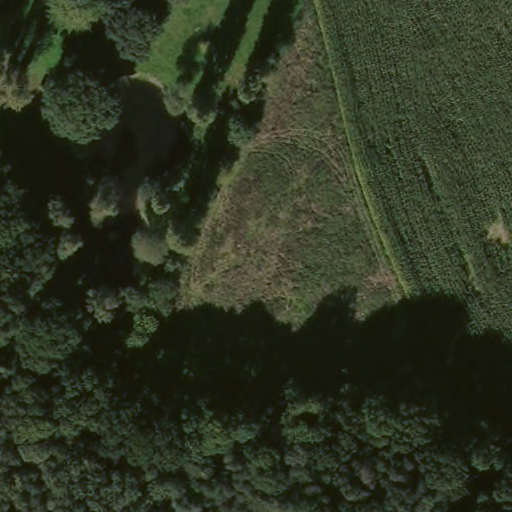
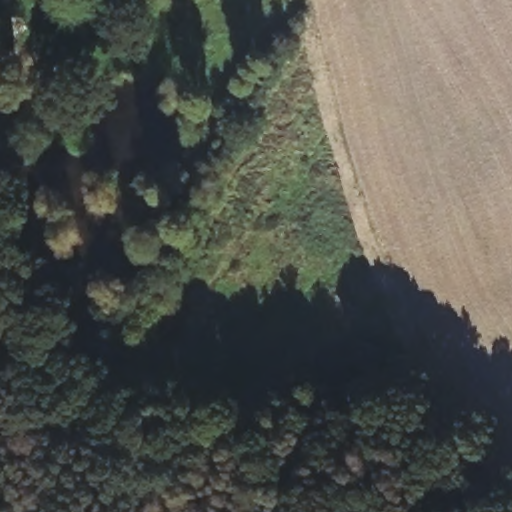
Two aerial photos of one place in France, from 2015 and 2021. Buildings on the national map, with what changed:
unchanged [(2,5),(0,4),(0,0),(5,0),(2,5)]

